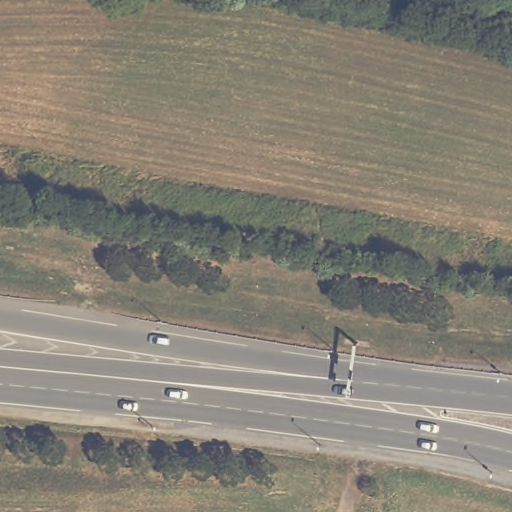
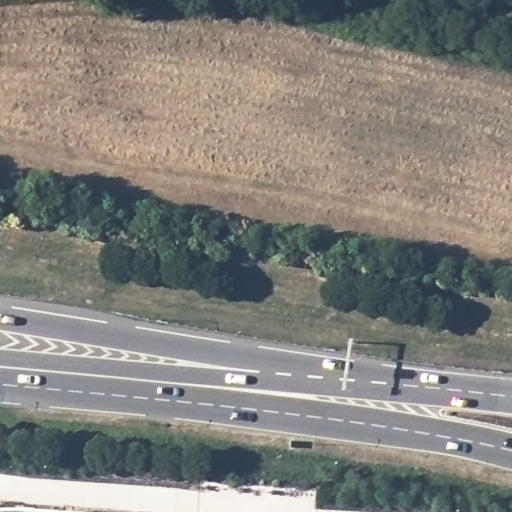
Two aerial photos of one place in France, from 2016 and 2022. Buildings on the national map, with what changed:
[]

